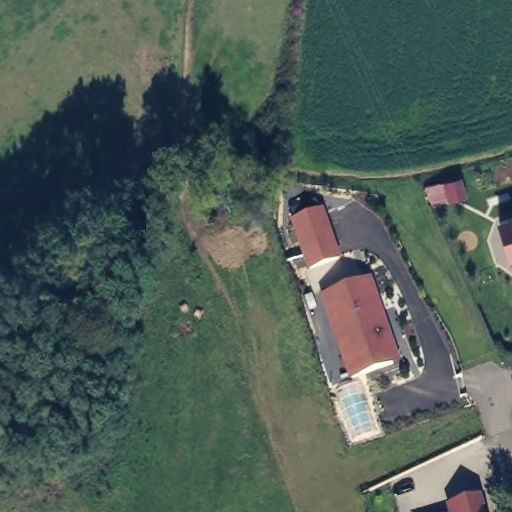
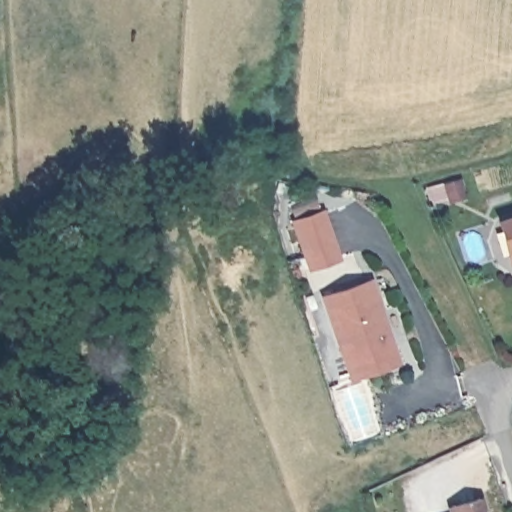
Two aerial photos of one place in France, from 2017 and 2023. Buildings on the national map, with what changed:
unchanged [(323,207),(337,255),(311,263),(295,216),(323,207)]
unchanged [(512,214),(512,264),(508,262),(495,220),(512,214)]
unchanged [(366,273),(378,311),(375,313),(386,359),(343,371),(318,289),(366,273)]
unchanged [(480,497),(485,512),(448,512),(446,505),(480,497)]

